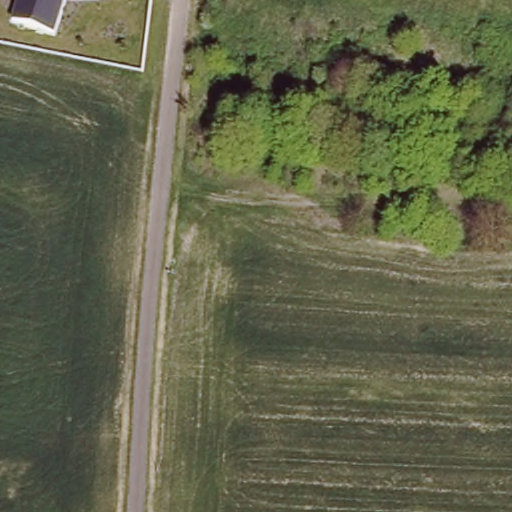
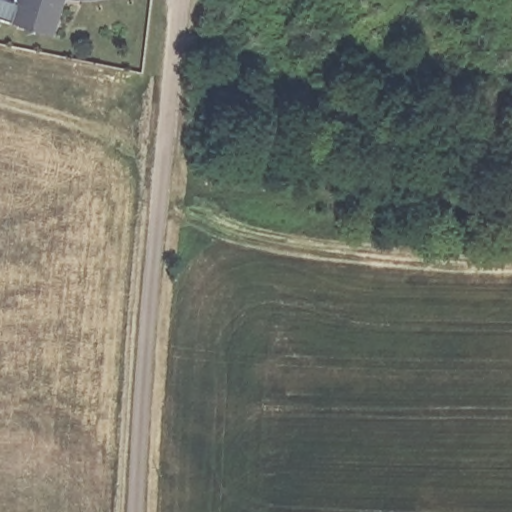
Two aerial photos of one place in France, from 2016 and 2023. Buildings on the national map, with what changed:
unchanged [(66,0),(55,35),(10,21),(16,0),(66,0)]

